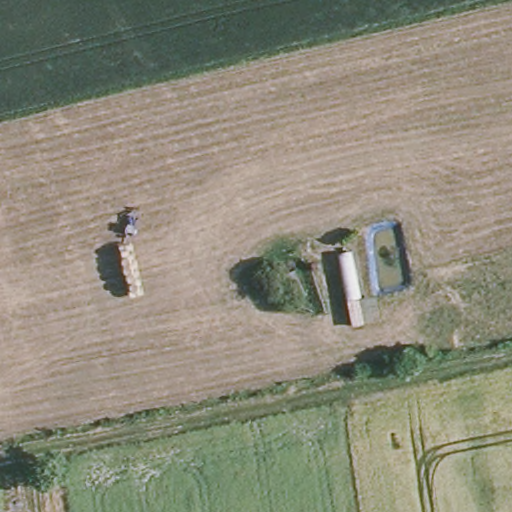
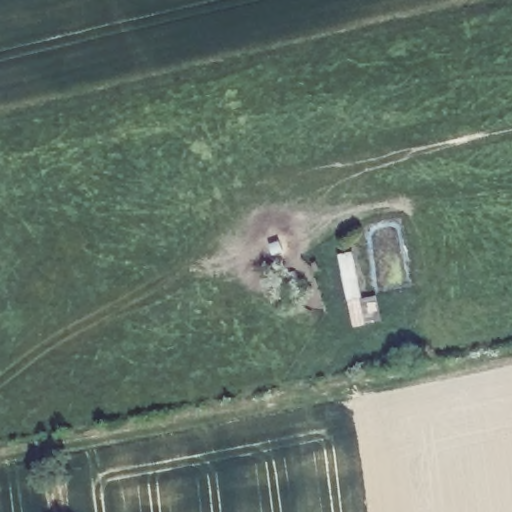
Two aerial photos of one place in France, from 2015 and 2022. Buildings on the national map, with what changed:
unchanged [(354,248),(364,294),(379,292),(384,320),(349,327),(334,250),(354,248)]

